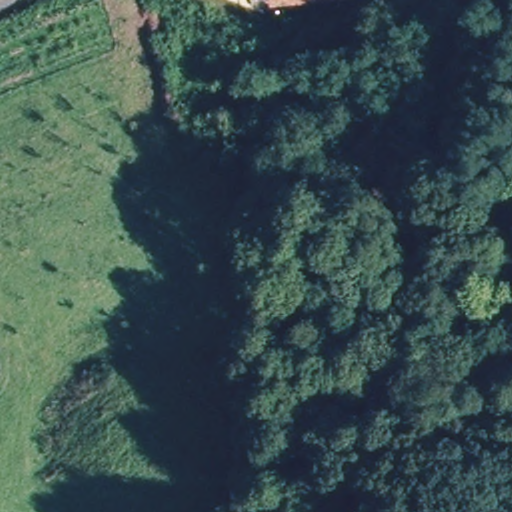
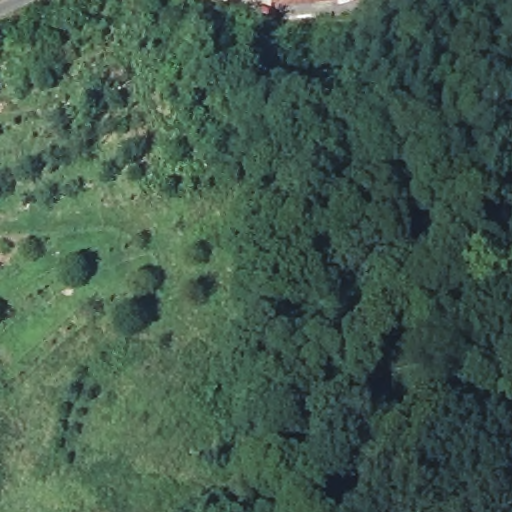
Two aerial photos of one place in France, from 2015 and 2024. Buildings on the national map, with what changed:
unchanged [(268,0),(301,0),(269,4),(268,0)]

